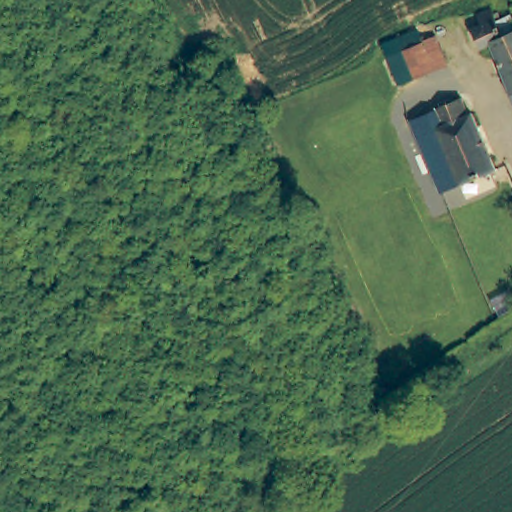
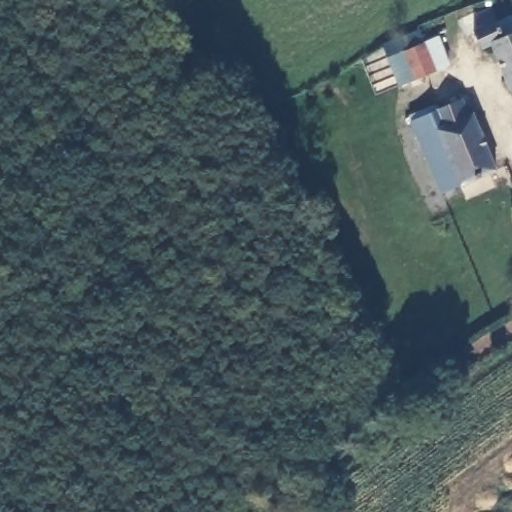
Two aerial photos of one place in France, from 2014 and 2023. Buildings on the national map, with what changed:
unchanged [(494,47),(483,51),(475,34),(487,30),(483,20),(500,14),(504,23),(512,20),(512,89),(494,47)]
unchanged [(449,64),(405,84),(392,56),(387,44),(420,29),(426,41),(436,36),(449,64)]
unchanged [(460,180),(430,107),(460,96),(466,111),(471,109),(494,167),(460,180)]
unchanged [(409,116),(430,107),(460,180),(448,184),(440,188),(409,116)]

